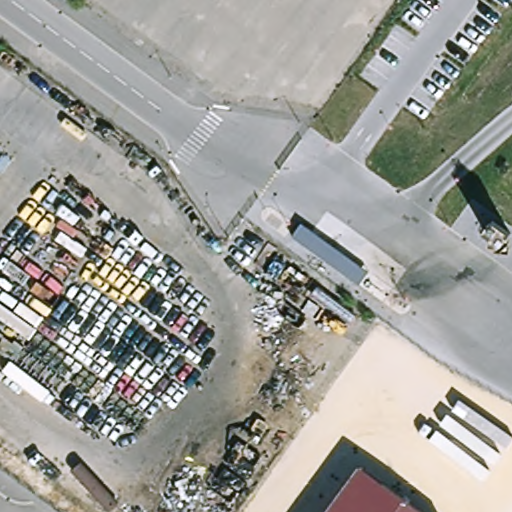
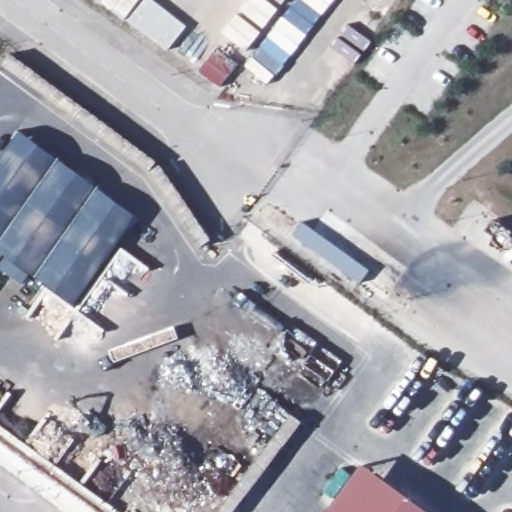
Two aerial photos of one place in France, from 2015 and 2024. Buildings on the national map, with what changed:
new [(74,309),(0,257),(0,157),(20,132),(135,217),(74,309)]
demolished [(512,231),(497,220),(505,209),(512,213),(512,231)]
demolished [(313,211),(382,259),(373,272),(304,224),(313,211)]
unchanged [(359,284),(295,237),(304,224),(369,272),(359,284)]
unchanged [(423,512),(327,512),(361,467),(423,512)]

